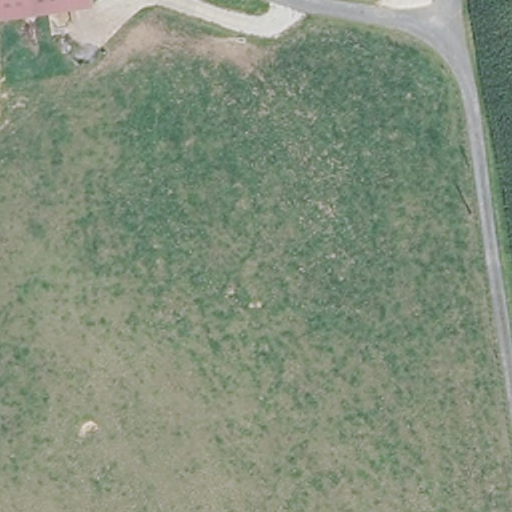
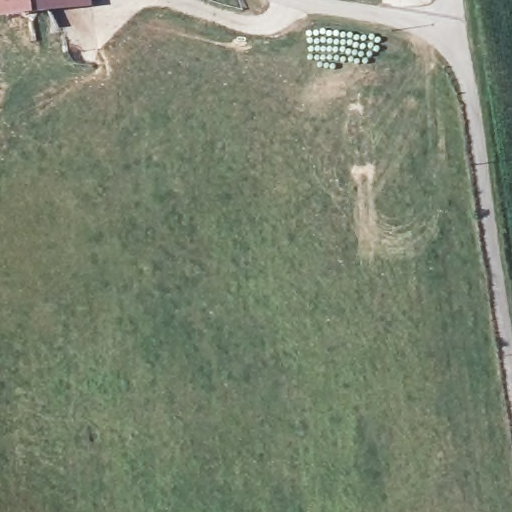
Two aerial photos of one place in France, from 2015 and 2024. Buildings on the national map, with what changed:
unchanged [(0,0),(1,0),(2,4),(0,4),(0,0)]
unchanged [(3,14),(2,4),(1,0),(88,0),(88,2),(3,14)]

